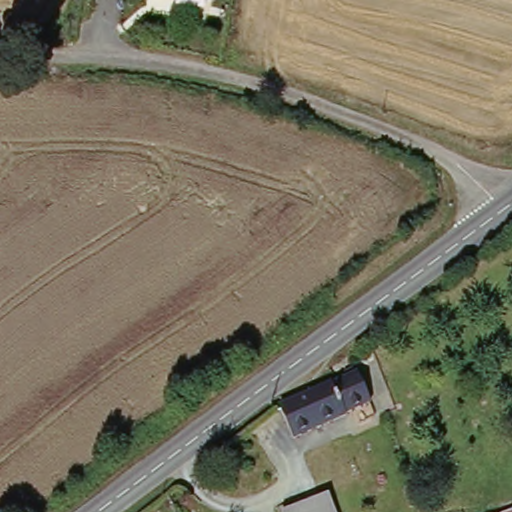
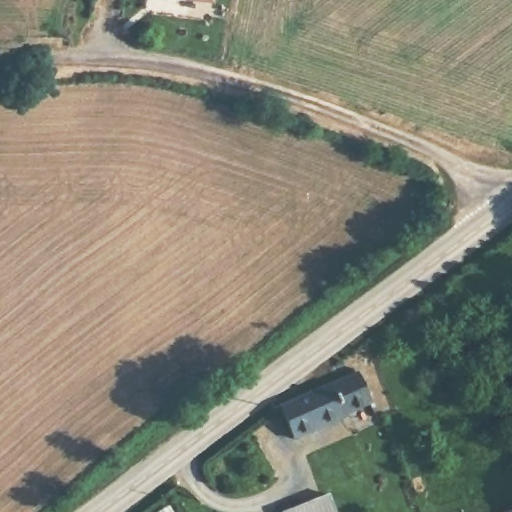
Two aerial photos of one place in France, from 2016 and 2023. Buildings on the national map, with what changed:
unchanged [(359,368),(372,399),(347,409),(348,410),(294,433),(281,402),(359,368)]
unchanged [(330,493),(339,512),(288,512),(288,511),(330,493)]
unchanged [(512,511),(512,512),(509,512),(512,511)]

